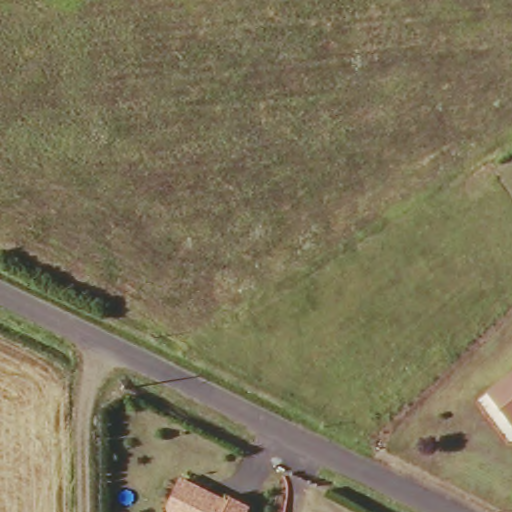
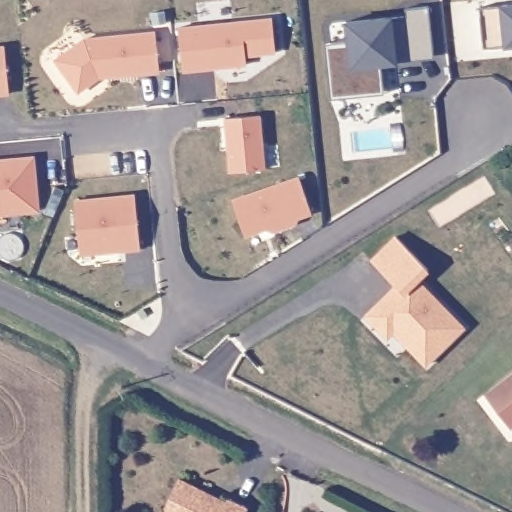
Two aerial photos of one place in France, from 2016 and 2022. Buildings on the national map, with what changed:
new [(509,39),(509,44),(481,46),(477,6),(512,2),(512,38),(509,39)]
new [(345,40),(343,21),(403,14),(402,6),(426,5),(431,49),(392,53),(393,61),(378,62),(381,88),(351,91),(348,66),(330,68),(327,41),(345,40)]
new [(269,18),(272,51),(241,55),(243,64),(179,71),(174,28),(269,18)]
new [(80,39),(152,31),(156,70),(104,75),(104,73),(94,74),(94,76),(75,91),(52,60),(80,39)]
new [(327,41),(330,68),(348,66),(351,91),(381,88),(381,92),(327,99),(321,42),(327,41)]
new [(0,94),(0,51),(4,94),(0,94)]
new [(256,114),(261,168),(228,171),(222,118),(256,114)]
new [(34,211),(0,214),(0,160),(29,157),(34,211)]
new [(296,176),(309,212),(295,217),(292,223),(271,230),(264,227),(242,235),(229,200),(296,176)]
new [(131,194),(137,248),(121,250),(121,245),(115,245),(116,250),(96,253),(95,248),(85,249),(76,241),(71,201),(131,194)]
new [(403,342),(392,331),(386,337),(369,320),(364,315),(375,304),(388,291),(394,285),(370,259),(394,236),(426,269),(415,279),(462,327),(432,356),(424,364),(403,342)]
unchanged [(482,395),(512,371),(512,415),(505,421),(502,422),(482,395)]
unchanged [(164,508),(177,483),(223,505),(226,500),(245,508),(243,512),(166,512),(164,508)]

